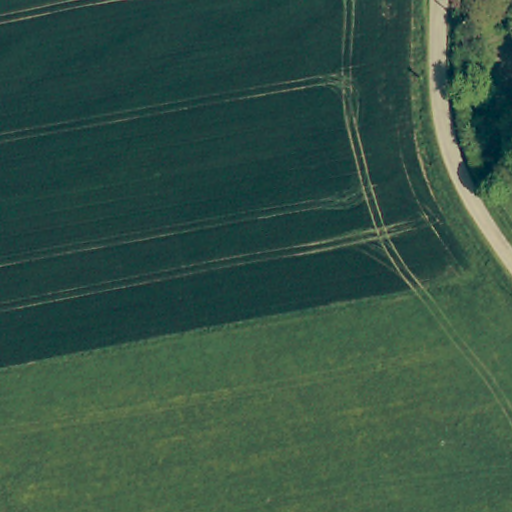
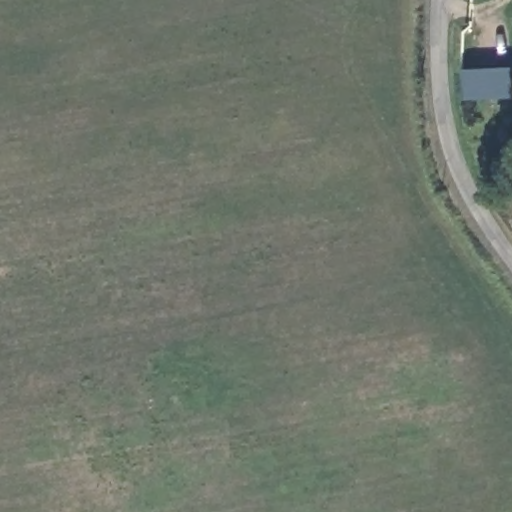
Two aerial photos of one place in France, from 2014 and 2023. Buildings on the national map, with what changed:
new [(512,68),(512,98),(460,100),(459,69),(512,68)]

